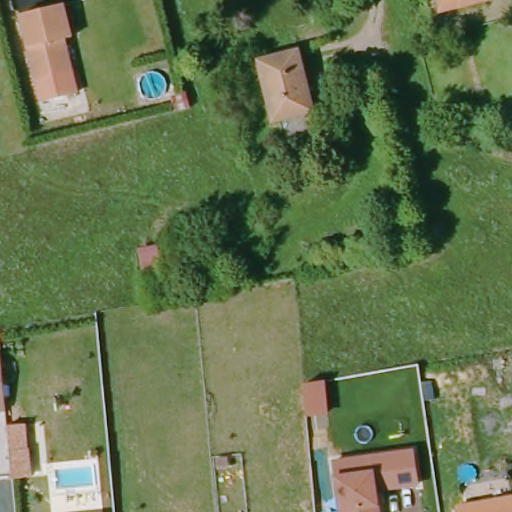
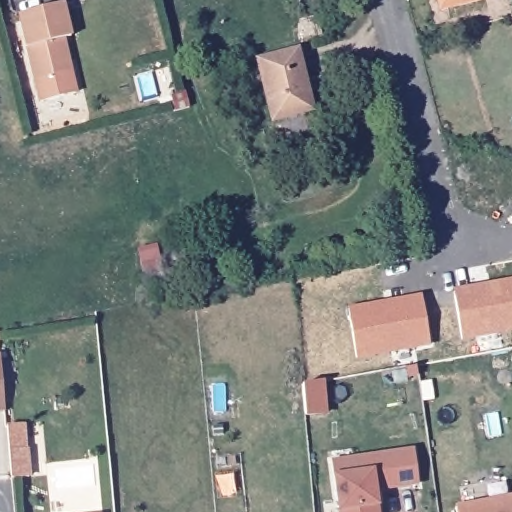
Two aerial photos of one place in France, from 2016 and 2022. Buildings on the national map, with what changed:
unchanged [(434,0),(480,0),(437,10),(434,0)]
unchanged [(501,0),(512,0),(512,24),(508,25),(501,0)]
unchanged [(71,34),(64,36),(72,70),(37,78),(20,11),(63,3),(71,34)]
unchanged [(293,47),(308,107),(268,117),(252,57),(293,47)]
unchanged [(227,244),(242,240),(247,265),(233,269),(227,244)]
new [(457,287),(512,278),(512,332),(463,339),(457,287)]
new [(430,343),(353,358),(347,301),(423,288),(430,343)]
new [(5,411),(0,412),(0,355),(5,411)]
new [(25,424),(32,476),(12,478),(7,425),(25,424)]
unchanged [(332,464),(415,452),(421,489),(379,495),(381,509),(381,512),(339,512),(335,480),(332,464)]
unchanged [(512,500),(512,512),(458,512),(457,509),(512,500)]

